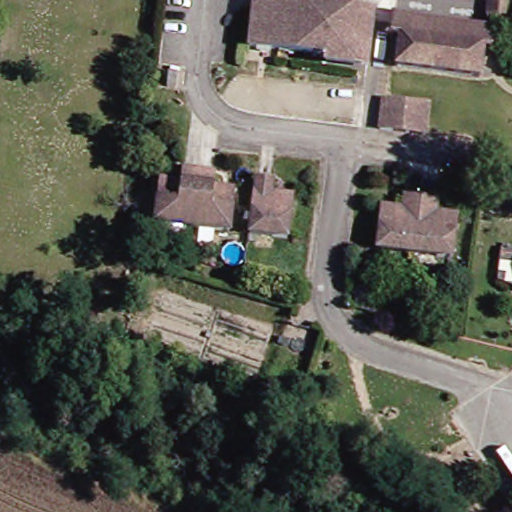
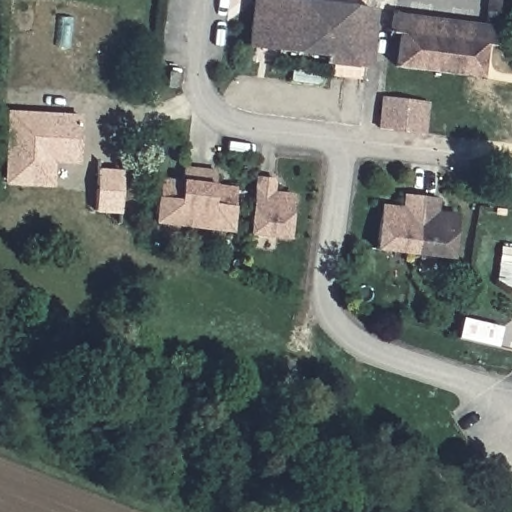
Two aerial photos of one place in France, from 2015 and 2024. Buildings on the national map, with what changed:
unchanged [(366,56),(250,49),(254,0),(292,0),(291,4),(373,12),(366,56)]
unchanged [(491,32),(481,30),(484,0),(496,0),(491,32)]
unchanged [(473,25),(472,42),(395,31),(385,30),(388,14),(473,25)]
unchanged [(478,43),(472,78),(392,67),(395,31),(472,42),(478,43)]
unchanged [(374,126),(375,98),(421,104),(420,131),(374,126)]
new [(79,165),(54,165),(52,187),(2,187),(6,111),(82,115),(79,165)]
new [(120,216),(92,214),(95,169),(124,172),(120,216)]
unchanged [(216,172),(215,187),(234,192),(232,199),(226,232),(154,221),(159,191),(160,183),(181,186),(182,169),(216,172)]
unchanged [(268,194),(287,196),(283,234),(247,230),(255,176),(270,177),(268,194)]
unchanged [(438,202),(435,215),(455,218),(455,226),(451,256),(377,246),(381,215),(382,207),(404,209),(405,197),(438,202)]
unchanged [(512,276),(512,294),(509,294),(512,276)]

